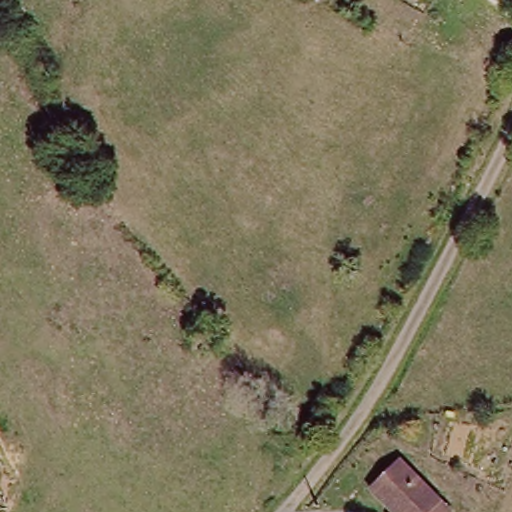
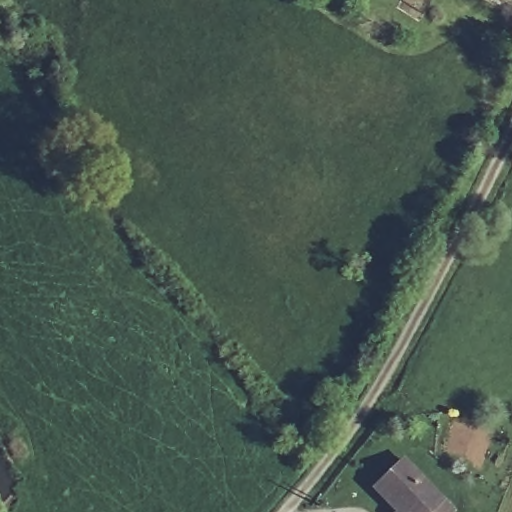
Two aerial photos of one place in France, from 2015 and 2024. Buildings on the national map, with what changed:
unchanged [(368,484),(399,455),(450,510),(447,512),(384,512),(390,507),(368,484)]

